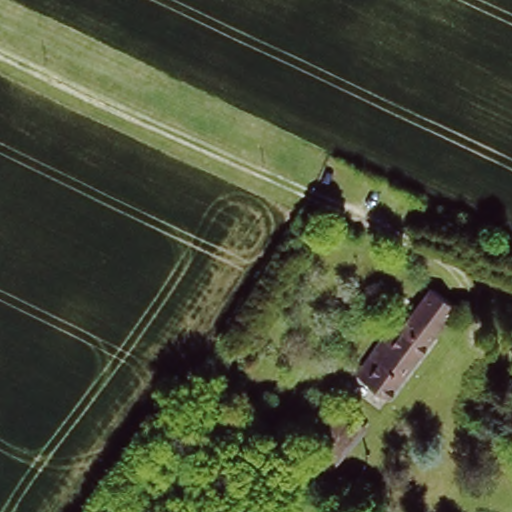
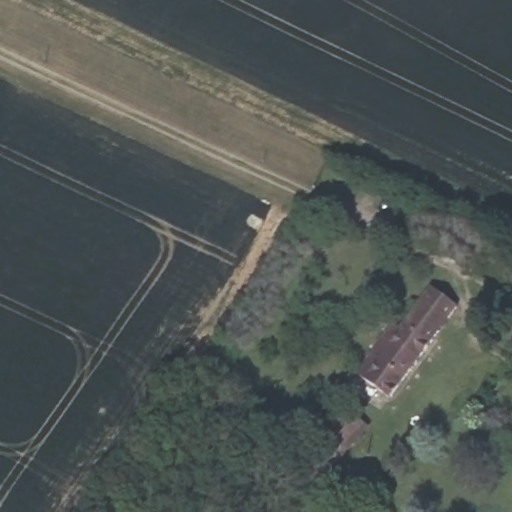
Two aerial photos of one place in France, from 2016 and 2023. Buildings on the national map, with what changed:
unchanged [(398,320),(408,327),(436,285),(462,303),(390,404),(357,379),(398,320)]
unchanged [(328,391),(369,422),(334,469),(299,435),(328,391)]

